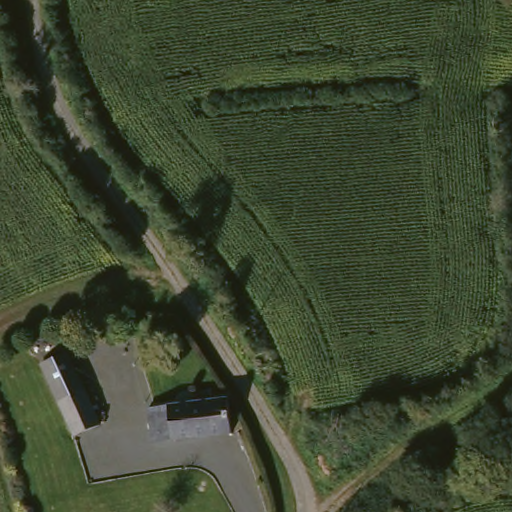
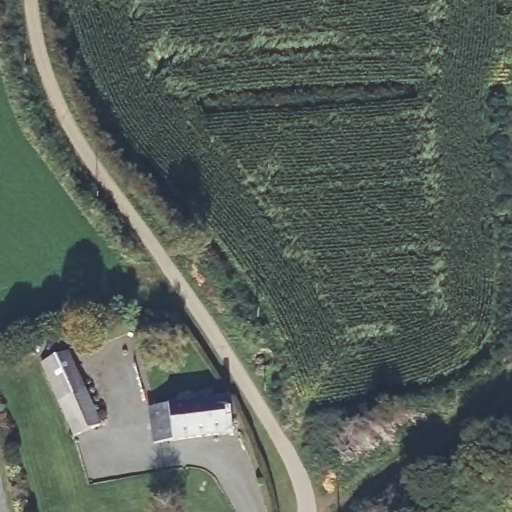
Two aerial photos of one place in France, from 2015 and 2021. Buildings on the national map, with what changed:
unchanged [(44,358),(72,348),(99,424),(72,433),(44,358)]
unchanged [(155,404),(225,399),(230,434),(158,441),(155,404)]

